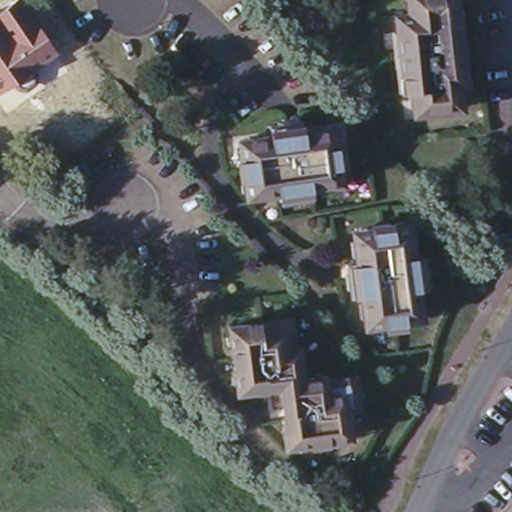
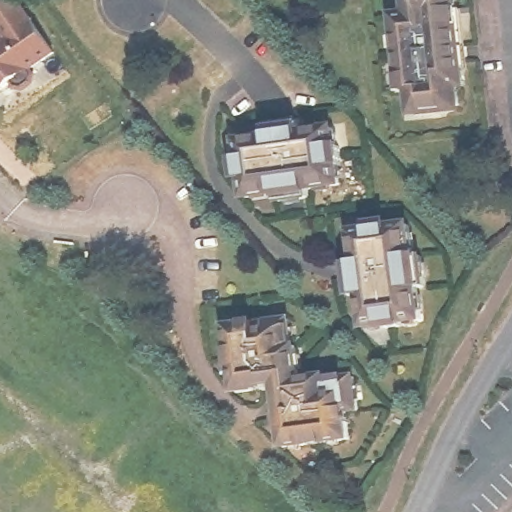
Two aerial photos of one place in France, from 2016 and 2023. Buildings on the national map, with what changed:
unchanged [(39,73),(39,83),(24,91),(17,88),(14,83),(0,91),(0,10),(14,0),(21,0),(59,52),(35,68),(39,73)]
unchanged [(394,76),(397,75),(392,14),(404,13),(403,0),(455,0),(456,7),(459,7),(461,21),(457,22),(464,83),(456,85),(458,103),(441,104),(442,111),(426,112),(425,106),(409,107),(407,90),(394,91),(394,76)]
unchanged [(239,181),(235,181),(233,163),(237,162),(235,143),(268,140),(267,130),(297,127),(299,136),(329,132),(331,151),(337,151),(339,169),(333,169),(335,188),(305,192),(307,199),(275,203),(274,196),(242,199),(239,181)]
unchanged [(359,289),(349,290),(347,261),(355,259),(352,228),(370,226),(370,221),(388,220),(389,224),(407,222),(409,253),(417,253),(419,282),(413,283),(416,315),(399,317),(399,321),(381,322),(380,319),(362,320),(359,289)]
unchanged [(229,391),(219,326),(279,317),(285,348),(290,347),(295,380),(320,377),(322,380),(346,376),(353,411),(340,413),(344,439),(279,450),(275,421),(277,420),(271,385),(229,391)]

